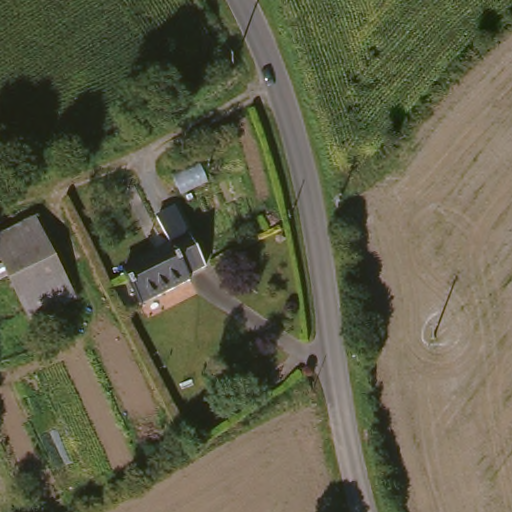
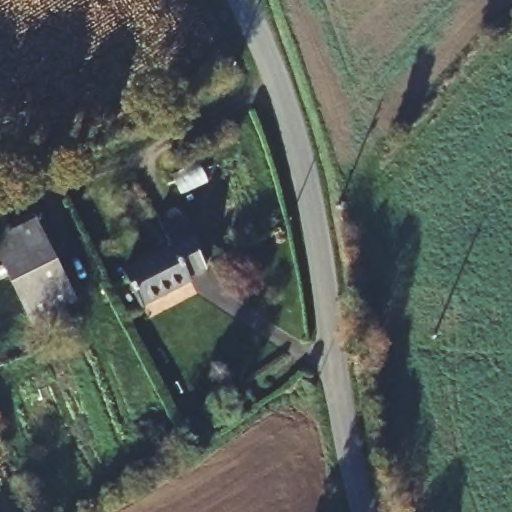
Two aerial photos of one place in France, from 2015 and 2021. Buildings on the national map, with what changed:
unchanged [(172,258),(161,227),(180,219),(192,250),(203,280),(190,284),(191,291),(139,310),(124,276),(172,258)]
unchanged [(75,303),(30,326),(0,268),(0,240),(34,223),(75,303)]

